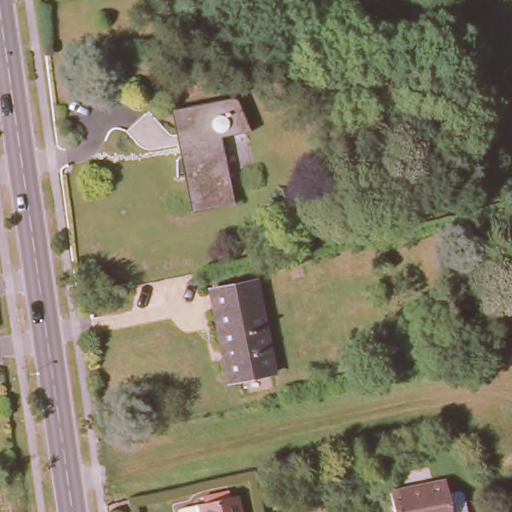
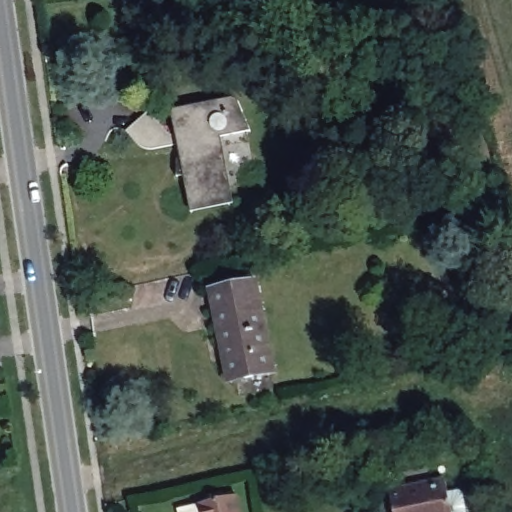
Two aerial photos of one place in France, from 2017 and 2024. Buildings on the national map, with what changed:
unchanged [(190,206),(190,196),(187,177),(175,177),(175,162),(175,160),(177,157),(180,155),(182,155),(181,144),(152,150),(147,150),(144,150),(141,147),(127,130),(149,111),(167,132),(169,134),(170,134),(172,134),(179,134),(175,109),(231,98),(234,100),(237,102),(239,105),(250,131),(213,138),(215,140),(217,142),(219,145),(220,150),(230,198),(190,206)]
unchanged [(230,381),(210,289),(255,280),(274,372),(230,381)]
unchanged [(445,475),(452,512),(395,512),(390,487),(445,475)]
unchanged [(237,495),(240,512),(202,512),(200,504),(237,495)]

